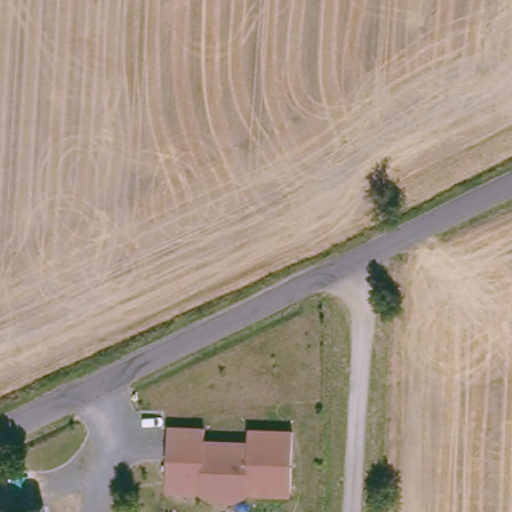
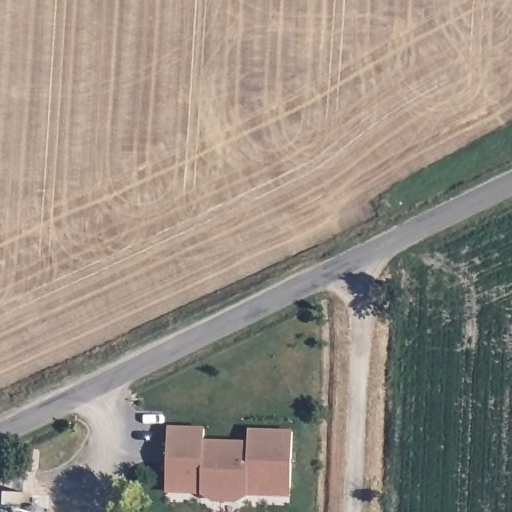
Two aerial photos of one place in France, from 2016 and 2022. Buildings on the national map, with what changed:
unchanged [(291,489),(248,487),(247,495),(235,502),(214,502),(201,493),(202,486),(183,486),(183,476),(167,475),(168,428),(205,430),(205,442),(220,443),(220,448),(231,449),(232,443),(248,444),(249,432),(293,433),(291,489)]
unchanged [(34,512),(1,512),(1,503),(34,503),(34,512)]

